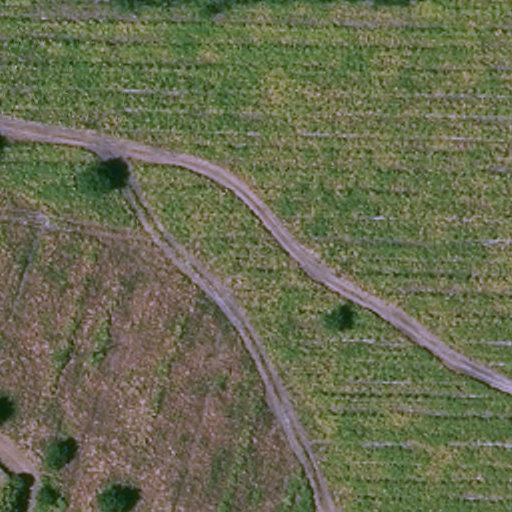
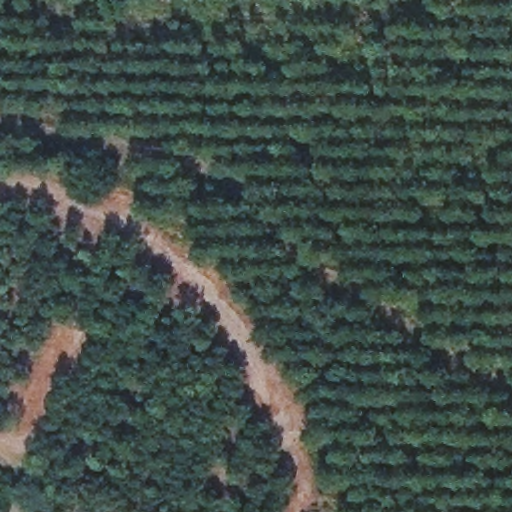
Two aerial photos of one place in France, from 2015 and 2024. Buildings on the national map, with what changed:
[]

